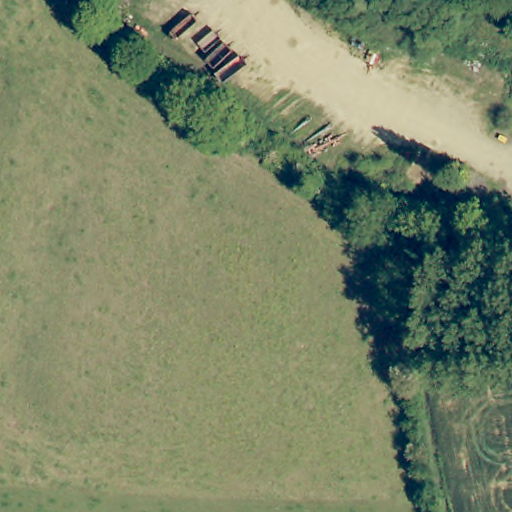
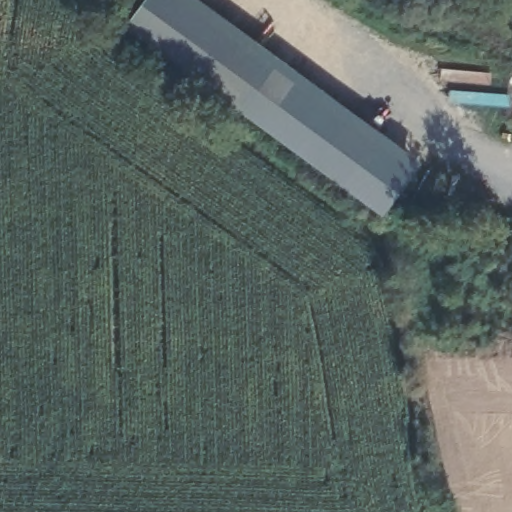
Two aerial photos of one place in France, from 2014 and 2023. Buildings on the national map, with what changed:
new [(422,164),(382,216),(125,26),(144,0),(201,0),(422,164)]

